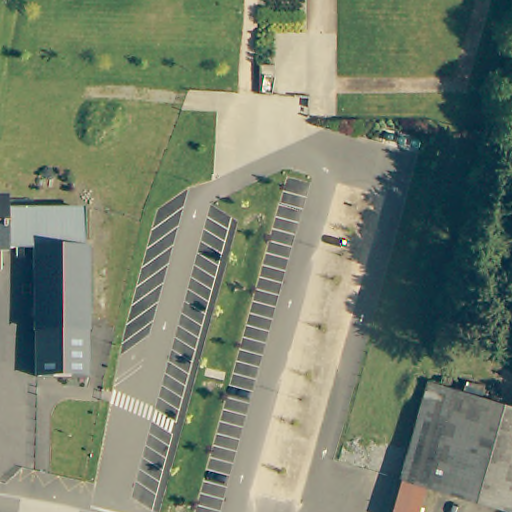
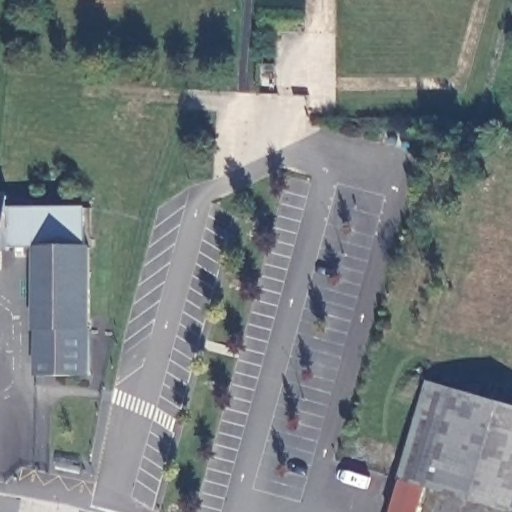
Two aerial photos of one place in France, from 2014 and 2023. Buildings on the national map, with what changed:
unchanged [(11,204),(87,203),(88,243),(92,243),(93,325),(41,325),(40,243),(12,243),(12,245),(0,246),(0,191),(11,190),(11,204)]
unchanged [(93,372),(42,372),(41,325),(93,325),(93,372)]
unchanged [(423,379),(512,402),(512,507),(422,482),(395,475),(423,379)]
unchanged [(413,512),(385,512),(395,475),(422,482),(413,512)]

